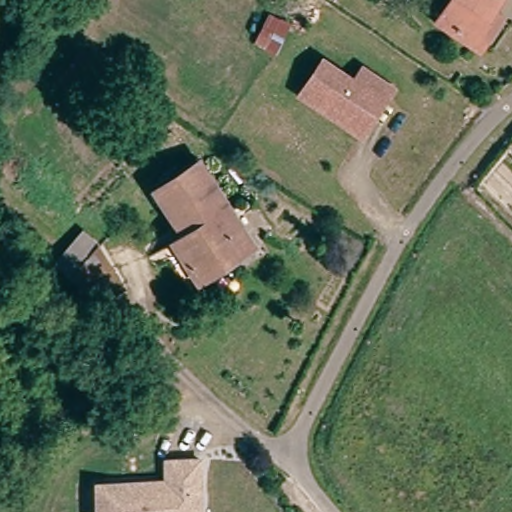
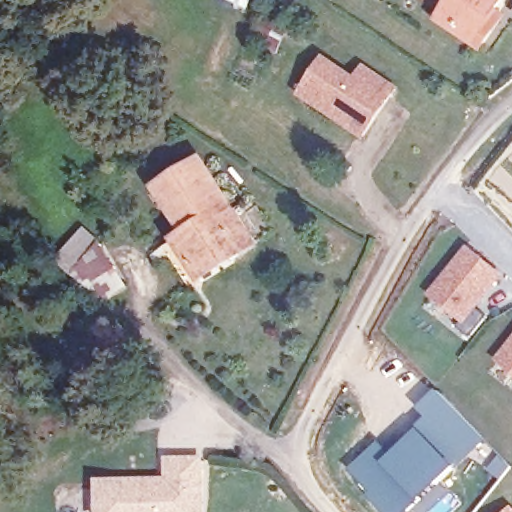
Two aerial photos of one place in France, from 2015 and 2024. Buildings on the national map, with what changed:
unchanged [(456,0),(507,0),(473,49),(438,26),(456,0)]
unchanged [(350,128),(298,95),(319,60),(350,80),(358,67),(390,87),(381,101),(361,135),(350,128)]
unchanged [(165,238),(188,224),(162,182),(188,166),(194,176),(212,165),(264,252),(197,292),(165,238)]
unchanged [(99,243),(125,284),(128,310),(91,305),(72,276),(56,263),(85,228),(99,243)]
new [(462,322),(428,294),(467,246),(504,274),(477,309),(486,317),(470,337),(458,327),(462,322)]
new [(512,337),(512,374),(494,357),(512,337)]
new [(426,417),(419,409),(440,392),(485,440),(455,467),(416,427),(426,417)]
new [(388,448),(394,440),(398,444),(416,427),(455,467),(406,512),(380,512),(350,473),(381,441),(388,448)]
unchanged [(163,483),(163,488),(172,488),(170,462),(203,460),(206,505),(207,512),(105,512),(103,487),(163,483)]
new [(512,512),(510,512),(512,510),(512,512)]

